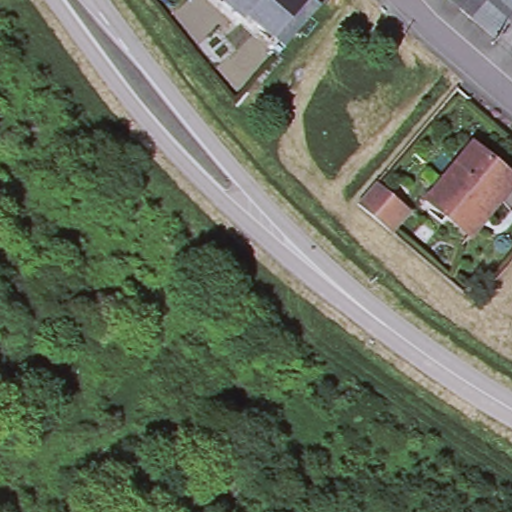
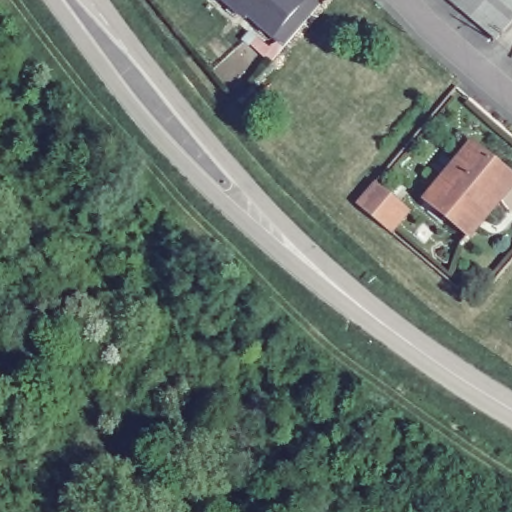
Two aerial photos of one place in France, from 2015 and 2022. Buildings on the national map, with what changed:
unchanged [(245,12),(242,17),(223,0),(303,0),(272,36),(245,12)]
unchanged [(494,41),(482,31),(471,22),(457,9),(446,0),(494,0),(512,16),(512,20),(494,41)]
unchanged [(466,235),(423,196),(471,141),(512,178),(512,182),(466,235)]
unchanged [(392,231),(383,224),(359,203),(377,182),(401,202),(410,210),(392,231)]

